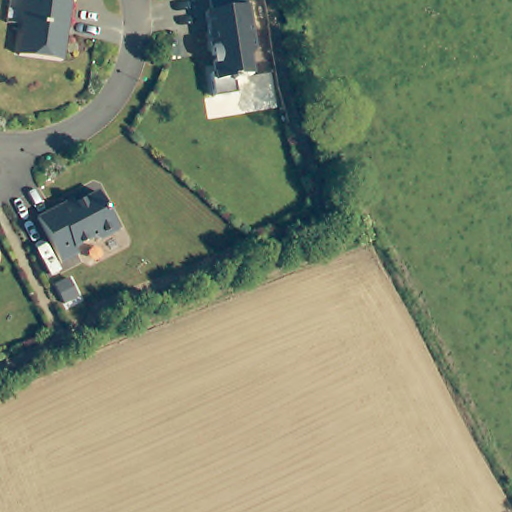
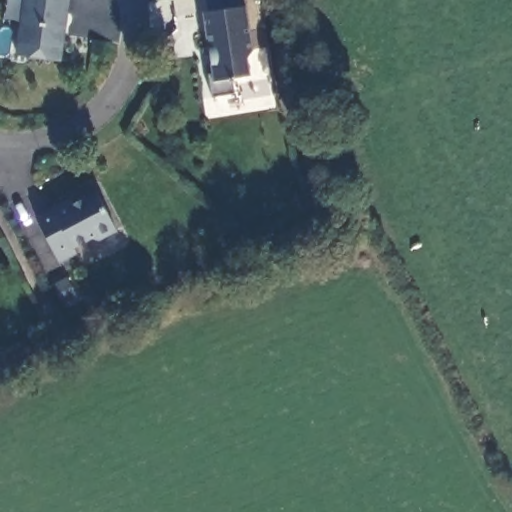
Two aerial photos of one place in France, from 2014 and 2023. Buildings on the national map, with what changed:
unchanged [(20,48),(28,0),(70,0),(64,30),(69,30),(64,56),(20,48)]
unchanged [(214,84),(205,23),(246,17),(253,60),(247,68),(250,86),(235,88),(235,92),(234,92),(235,105),(212,108),(209,84),(214,84)]
unchanged [(67,262),(44,217),(79,199),(81,203),(105,191),(125,230),(105,240),(96,239),(80,247),(84,253),(67,262)]

